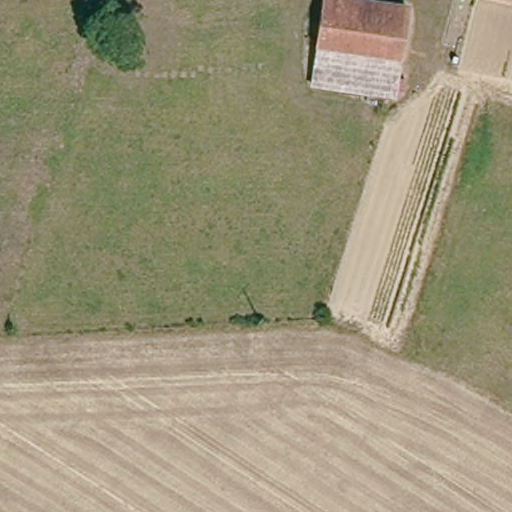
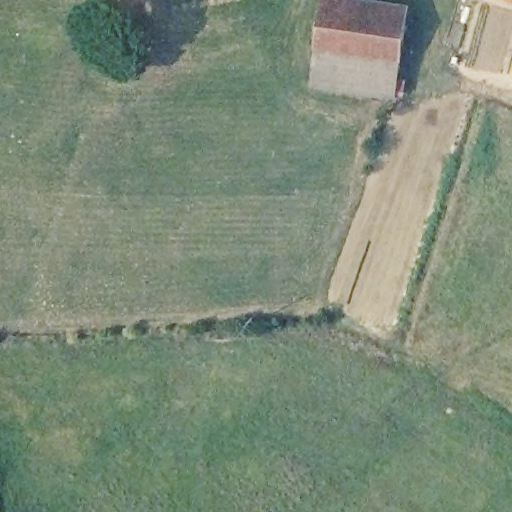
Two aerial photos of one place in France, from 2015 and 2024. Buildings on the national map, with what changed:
unchanged [(405,8),(396,59),(315,44),(322,0),(358,0),(405,8)]
unchanged [(308,80),(315,44),(396,59),(390,95),(308,80)]

